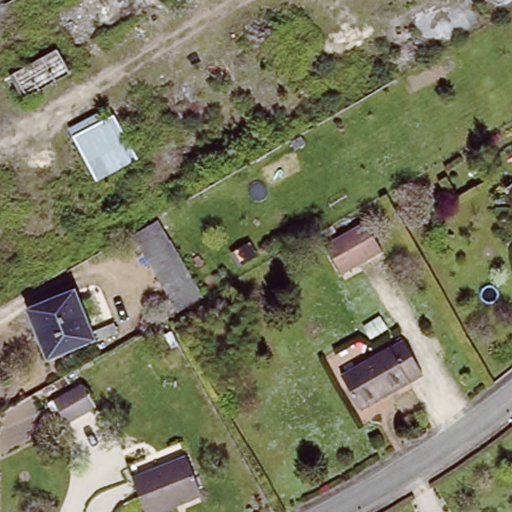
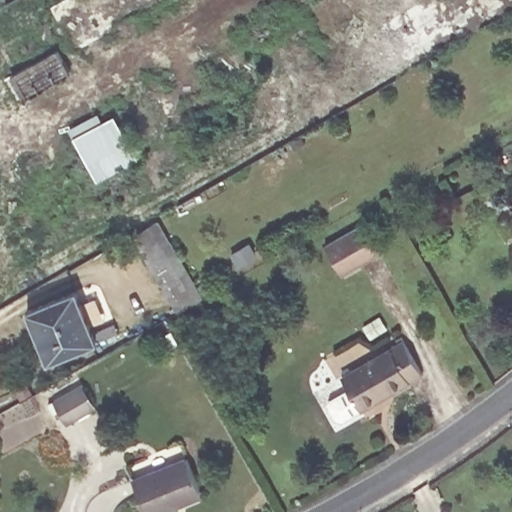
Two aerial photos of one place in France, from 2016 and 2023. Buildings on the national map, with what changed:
unchanged [(53,52),(65,76),(23,99),(10,75),(53,52)]
unchanged [(66,137),(108,118),(128,142),(139,165),(94,189),(66,137)]
unchanged [(198,297),(173,312),(129,237),(153,223),(198,297)]
unchanged [(359,226),(376,254),(336,277),(319,249),(359,226)]
unchanged [(92,343),(48,361),(28,308),(77,289),(93,329),(114,320),(119,332),(92,343)]
unchanged [(419,378),(356,414),(338,380),(394,349),(391,343),(397,340),(419,378)]
unchanged [(83,382),(95,406),(60,425),(52,400),(83,382)]
unchanged [(151,512),(142,512),(129,479),(183,458),(197,494),(151,512)]

